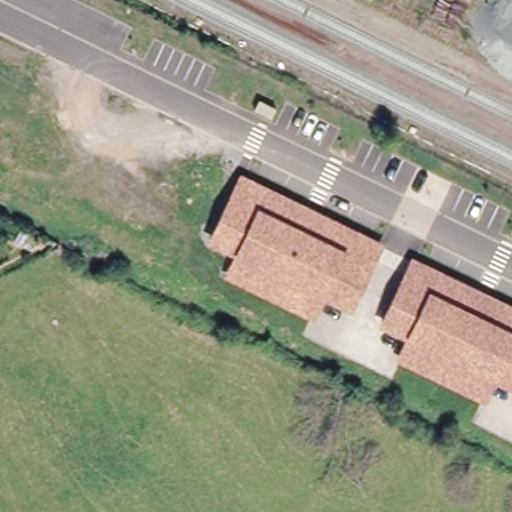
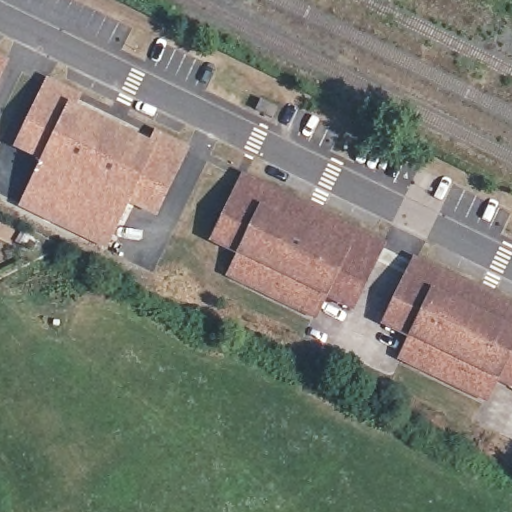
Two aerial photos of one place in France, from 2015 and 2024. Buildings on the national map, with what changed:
new [(6,61),(0,75),(0,58),(6,61)]
new [(80,96),(74,109),(145,143),(151,130),(187,148),(153,219),(125,206),(105,250),(16,208),(38,163),(10,150),(44,79),(80,96)]
unchanged [(279,107),(274,117),(258,109),(263,99),(279,107)]
unchanged [(377,257),(239,189),(245,177),(383,244),(377,257)]
unchanged [(377,257),(352,307),(328,295),(325,294),(322,299),(321,302),(319,307),(315,314),(287,301),(281,298),(232,274),(235,267),(238,262),(239,259),(242,254),(239,253),(215,240),(239,189),(377,257)]
unchanged [(417,260),(512,307),(512,322),(411,273),(417,260)]
unchanged [(512,385),(499,379),(497,377),(494,383),(487,398),(458,384),(453,382),(403,358),(408,347),(411,341),(413,337),(386,324),(411,273),(512,322),(512,385)]

